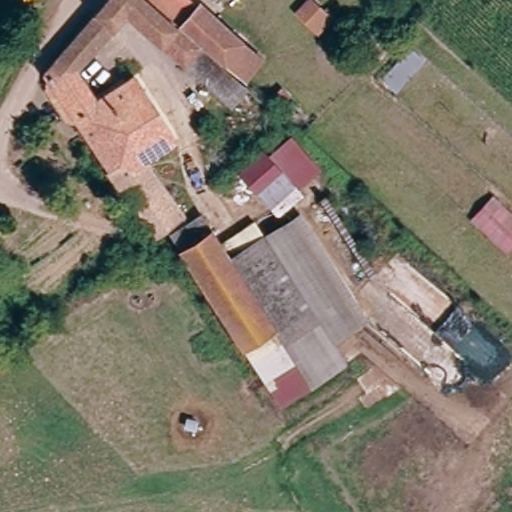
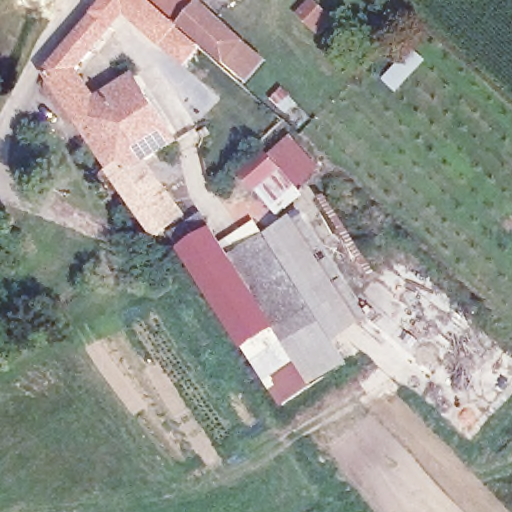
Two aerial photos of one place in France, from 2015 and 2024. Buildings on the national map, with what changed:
unchanged [(199,0),(267,60),(245,82),(250,90),(234,109),(129,17),(80,70),(95,96),(135,72),(179,141),(149,160),(187,214),(158,240),(42,74),(107,0),(199,0)]
unchanged [(300,20),(295,15),(309,0),(313,0),(316,3),(330,16),(315,32),(300,20)]
unchanged [(398,90),(381,76),(406,43),(425,56),(398,90)]
unchanged [(265,146),(279,166),(301,145),(322,170),(299,185),(307,196),(279,220),(239,173),(265,146)]
demolished [(503,254),(468,221),(490,194),(512,213),(512,244),(503,254)]
unchanged [(254,219),(263,231),(300,210),(371,316),(335,340),(346,361),(276,405),(257,375),(323,323),(265,235),(229,256),(220,241),(254,219)]
unchanged [(171,235),(203,214),(220,241),(229,256),(265,235),(323,323),(257,375),(171,235)]

